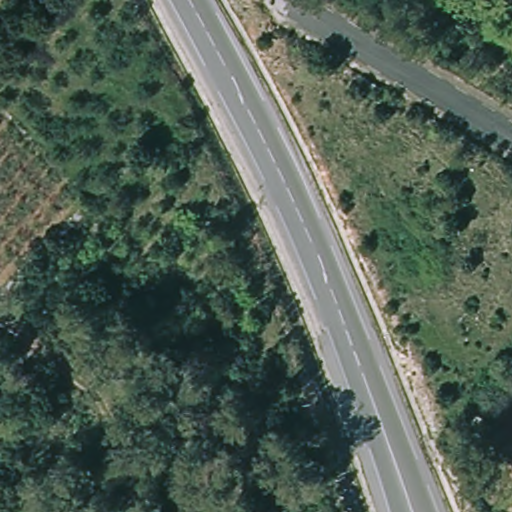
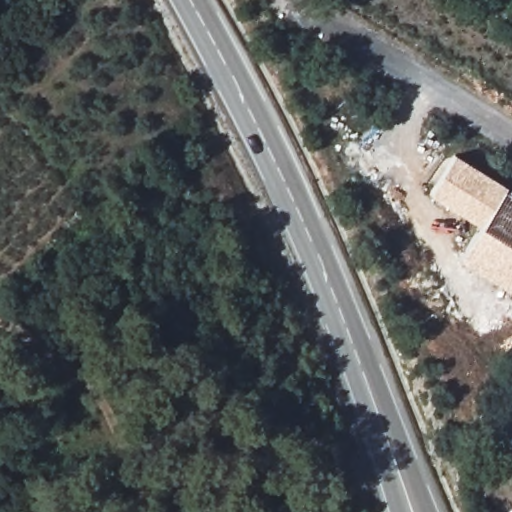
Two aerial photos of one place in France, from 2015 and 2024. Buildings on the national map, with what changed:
new [(506,185),(506,186),(512,190),(512,289),(511,290),(459,258),(480,225),(429,194),(454,154),(506,185)]

